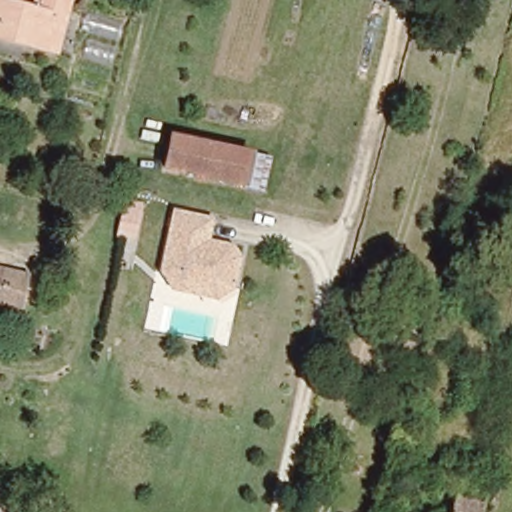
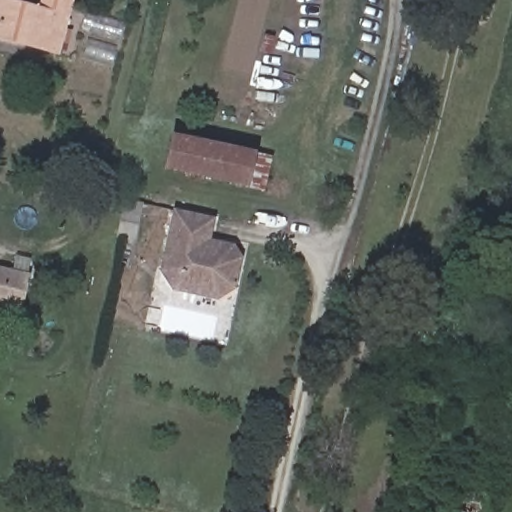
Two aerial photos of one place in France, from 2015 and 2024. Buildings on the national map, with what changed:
unchanged [(37,13),(41,0),(54,0),(70,4),(66,22),(59,56),(0,39),(0,3),(37,13)]
unchanged [(258,192),(240,189),(166,174),(173,141),(246,156),(265,160),(258,192)]
unchanged [(218,300),(174,291),(162,272),(171,228),(174,214),(211,222),(209,238),(209,242),(232,247),(238,259),(235,289),(218,300)]
unchanged [(27,276),(22,309),(0,304),(0,269),(27,276)]
unchanged [(448,459),(446,465),(462,469),(461,474),(488,480),(480,512),(451,512),(455,494),(434,490),(441,457),(448,459)]

